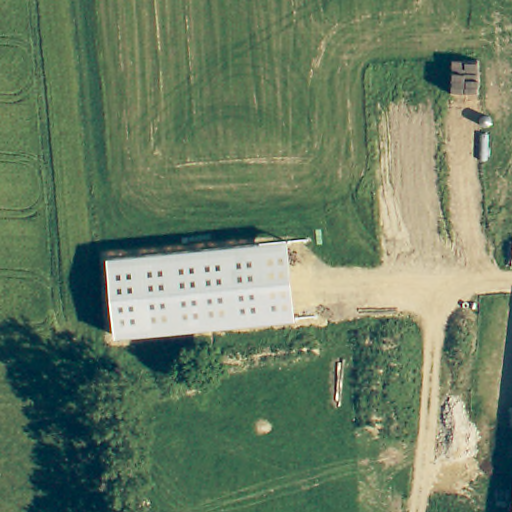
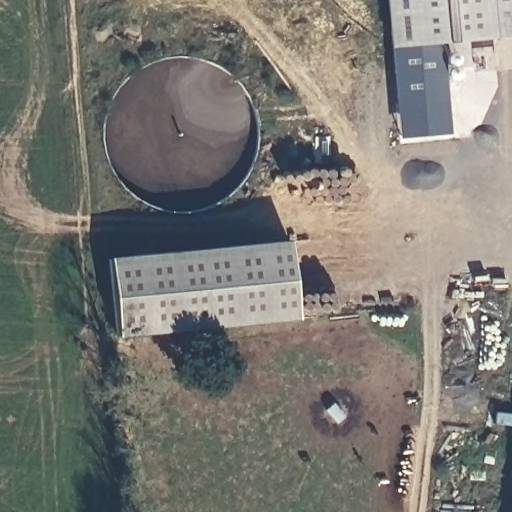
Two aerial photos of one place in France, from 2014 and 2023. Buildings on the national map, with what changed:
new [(449,135),(398,138),(385,0),(512,0),(512,35),(440,42),(449,135)]
unchanged [(109,258),(289,240),(299,319),(117,337),(109,258)]

